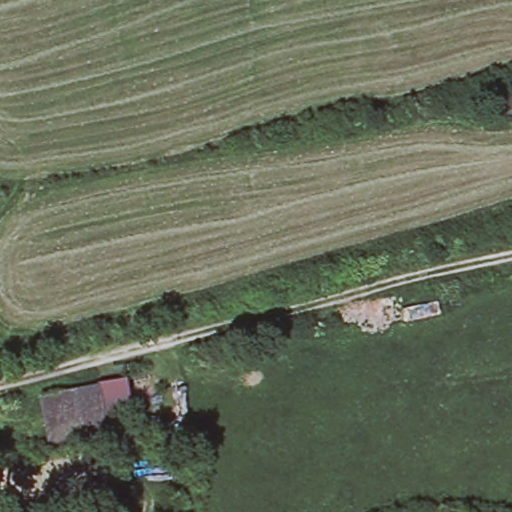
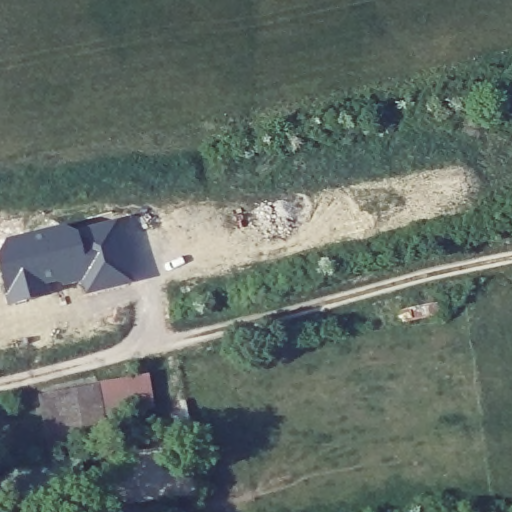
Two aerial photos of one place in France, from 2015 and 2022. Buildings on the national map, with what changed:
unchanged [(512,88),(512,114),(486,119),(481,94),(512,88)]
new [(132,284),(88,296),(85,285),(12,303),(0,256),(9,238),(66,225),(79,231),(115,220),(132,284)]
unchanged [(439,301),(441,313),(402,321),(400,309),(439,301)]
unchanged [(33,397),(93,385),(118,380),(123,409),(98,414),(103,440),(45,451),(33,397)]

